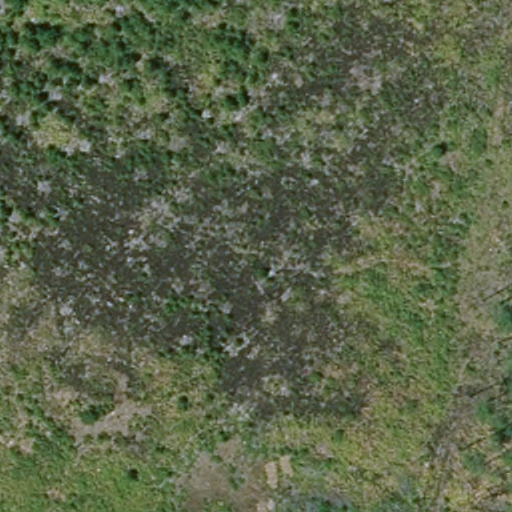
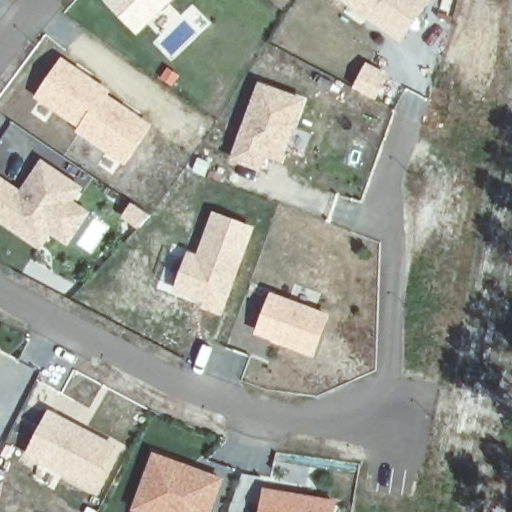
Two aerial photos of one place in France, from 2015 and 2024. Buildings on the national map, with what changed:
new [(106,0),(172,0),(136,35),(106,0)]
new [(342,0),(429,0),(399,42),(342,0)]
new [(125,165),(76,132),(78,128),(35,98),(61,58),(111,90),(108,94),(151,125),(125,165)]
new [(365,61),(389,75),(374,100),(351,87),(365,61)]
new [(257,81),(306,98),(280,164),(266,158),(260,172),(227,162),(257,81)]
new [(40,250),(0,223),(0,176),(21,191),(41,159),(83,187),(73,200),(91,212),(66,245),(51,235),(40,250)]
new [(223,315),(201,308),(203,302),(175,291),(189,252),(198,254),(213,212),(255,226),(223,315)]
new [(30,257),(74,282),(64,296),(21,272),(30,257)]
new [(255,334),(271,292),(330,313),(313,357),(255,334)]
new [(0,351),(0,347),(1,348),(0,351)]
new [(25,455),(49,409),(119,446),(94,491),(25,455)]
new [(142,512),(134,509),(154,453),(224,479),(212,512),(142,512)]
new [(336,499),(334,512),(259,512),(264,487),(336,499)]

